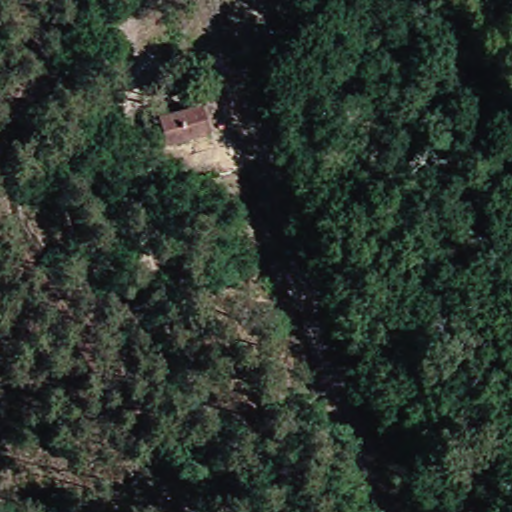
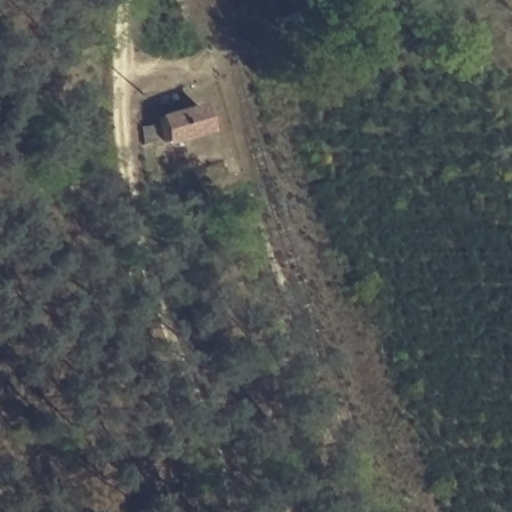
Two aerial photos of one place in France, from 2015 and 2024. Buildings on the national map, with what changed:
unchanged [(196,102),(206,135),(211,152),(188,158),(184,142),(164,148),(154,115),(196,102)]

